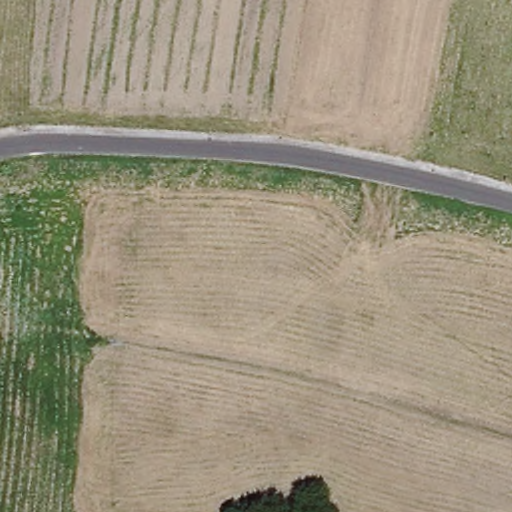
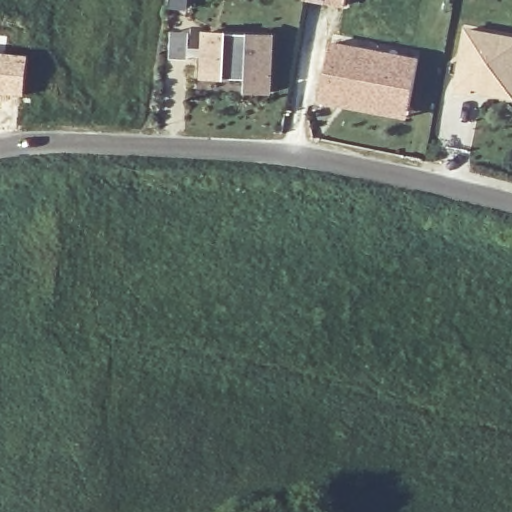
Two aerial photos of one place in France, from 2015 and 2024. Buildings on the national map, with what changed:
new [(340,5),(308,0),(341,0),(340,5)]
unchanged [(512,98),(475,91),(473,96),(453,92),(463,27),(512,36),(512,98)]
new [(277,35),(274,95),(246,94),(246,80),(200,79),(202,30),(277,35)]
new [(6,35),(5,51),(30,55),(25,96),(0,94),(0,35),(6,35)]
new [(330,40),(421,58),(410,118),(319,100),(330,40)]

